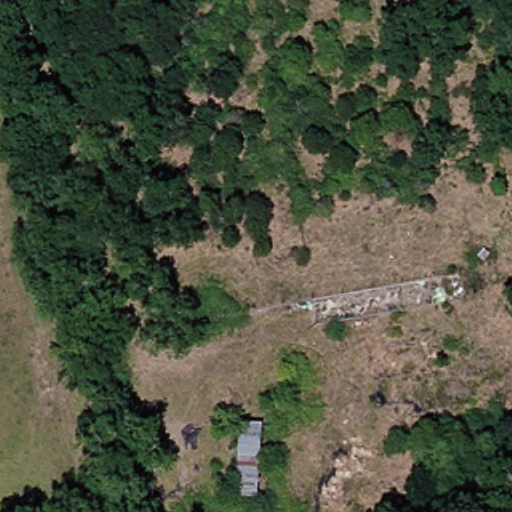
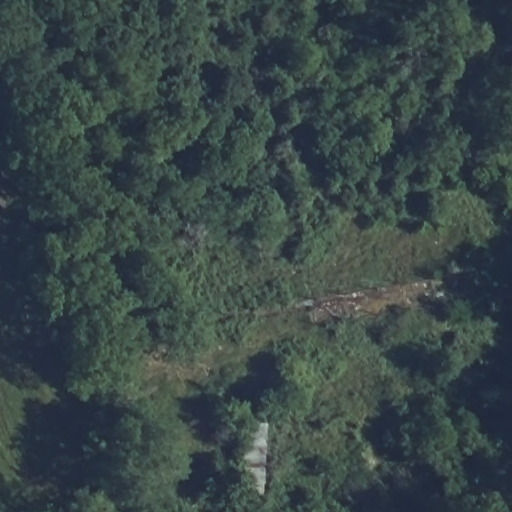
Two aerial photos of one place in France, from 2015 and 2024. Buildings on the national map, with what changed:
unchanged [(247,497),(253,421),(277,421),(275,500),(247,497)]

